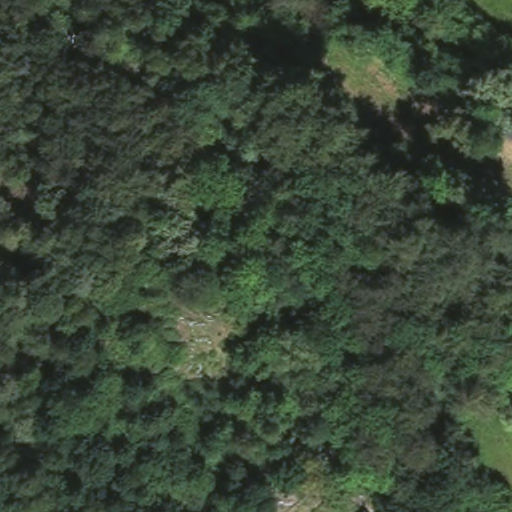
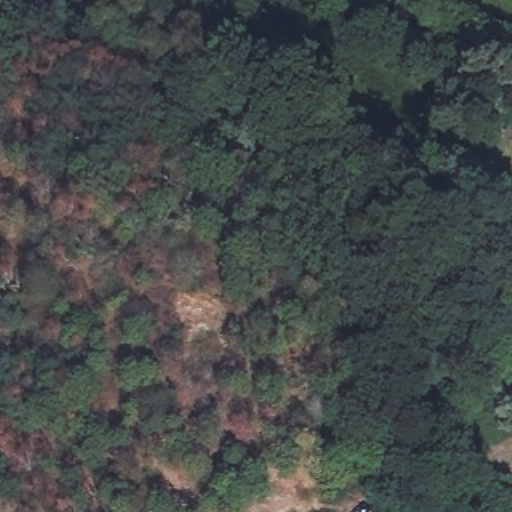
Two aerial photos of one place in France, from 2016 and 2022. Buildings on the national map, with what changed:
unchanged [(362,510),(364,512),(359,512),(362,510)]

